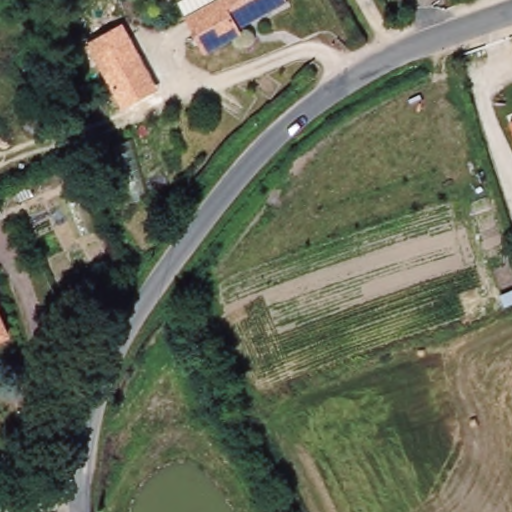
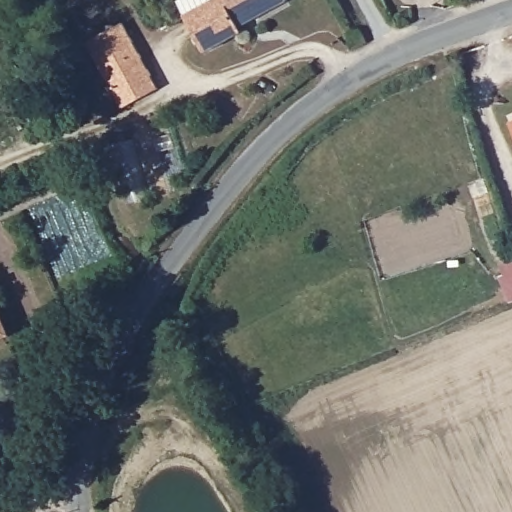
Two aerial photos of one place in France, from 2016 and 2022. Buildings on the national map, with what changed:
unchanged [(236,36),(206,53),(186,16),(215,0),(287,0),(288,1),(240,28),(236,36)]
unchanged [(87,41),(123,23),(158,88),(125,109),(87,41)]
unchanged [(0,343),(0,301),(16,336),(0,343)]

